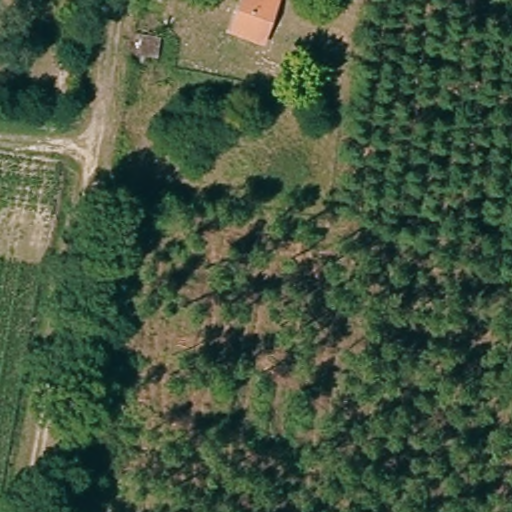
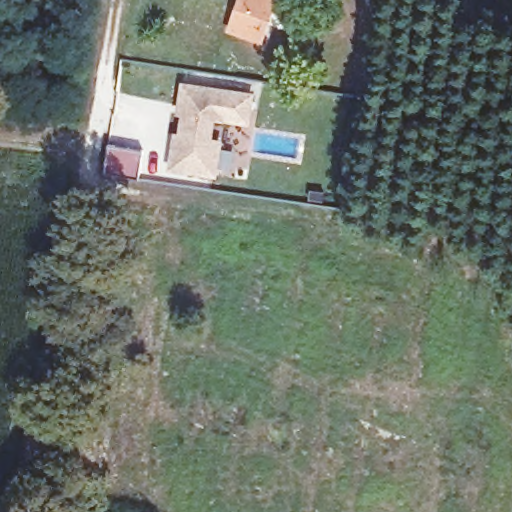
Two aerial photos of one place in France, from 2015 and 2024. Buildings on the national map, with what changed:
unchanged [(234,32),(246,0),(279,0),(263,41),(234,32)]
new [(255,93),(251,126),(216,120),(213,139),(223,141),(217,179),(167,171),(173,133),(178,133),(180,117),(174,116),(180,83),(255,93)]

